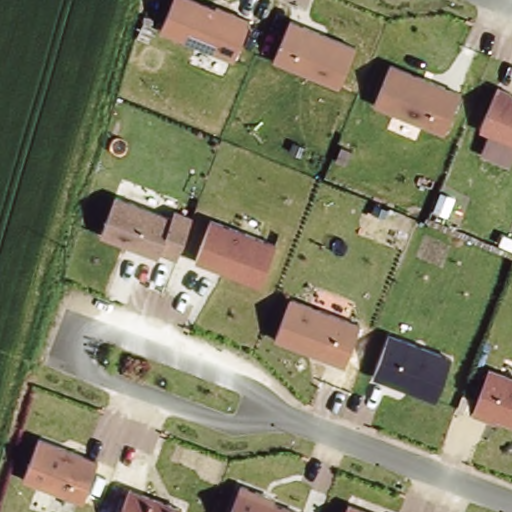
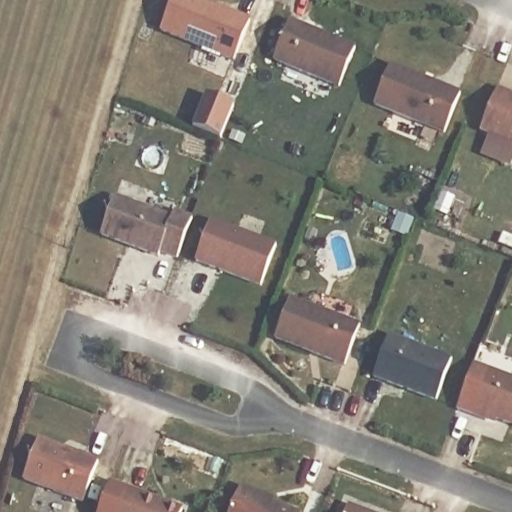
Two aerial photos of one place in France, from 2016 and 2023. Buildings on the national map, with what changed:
unchanged [(216,2),(251,16),(233,59),(160,30),(173,0),(201,0),(216,6),(216,2)]
unchanged [(354,45),(339,84),(274,59),(291,17),(354,45)]
unchanged [(389,63),(461,91),(445,133),(374,104),(389,63)]
unchanged [(496,89),(512,96),(512,145),(479,131),(496,89)]
new [(207,96),(213,99),(234,108),(221,141),(193,130),(199,115),(207,96)]
unchanged [(172,215),(174,207),(193,214),(178,257),(159,250),(157,256),(100,234),(116,194),(172,215)]
unchanged [(193,261),(209,218),(276,245),(259,285),(193,261)]
unchanged [(359,323),(343,365),(274,339),(291,297),(359,323)]
unchanged [(449,358),(435,401),(370,377),(386,333),(449,358)]
unchanged [(512,377),(512,424),(473,411),(486,368),(512,377)]
unchanged [(99,459),(83,501),(23,479),(39,434),(99,459)]
unchanged [(274,497),(273,501),(304,512),(229,512),(239,485),(274,497)]
unchanged [(182,512),(119,512),(129,486),(184,506),(182,512)]
unchanged [(376,512),(345,512),(349,502),(376,512)]

